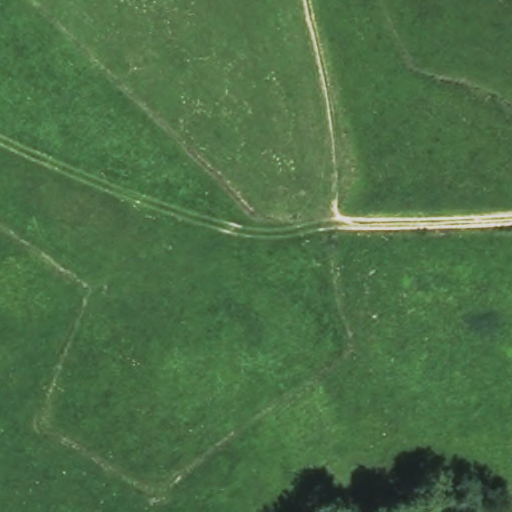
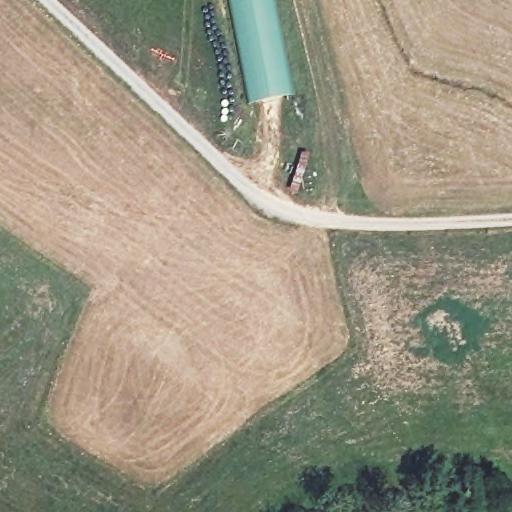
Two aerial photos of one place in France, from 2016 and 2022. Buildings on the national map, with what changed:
new [(275,0),(295,100),(249,107),(229,0),(275,0)]

